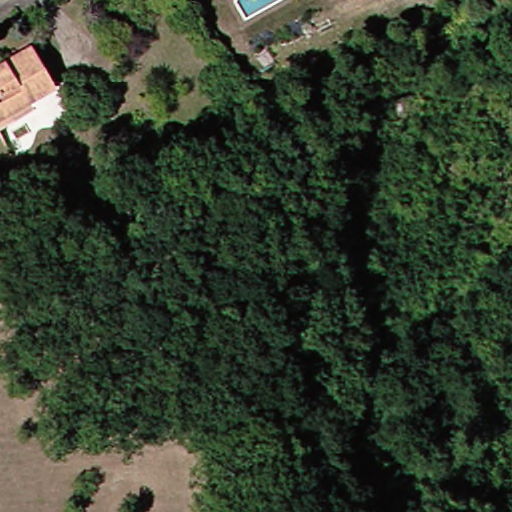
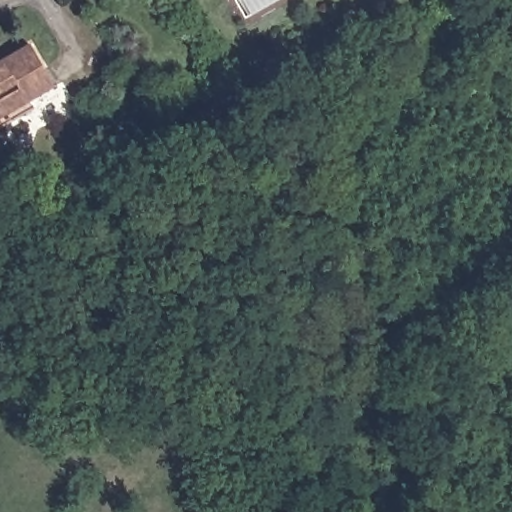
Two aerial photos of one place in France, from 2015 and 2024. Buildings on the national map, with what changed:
unchanged [(24,48),(46,89),(0,116),(0,61),(24,48)]

